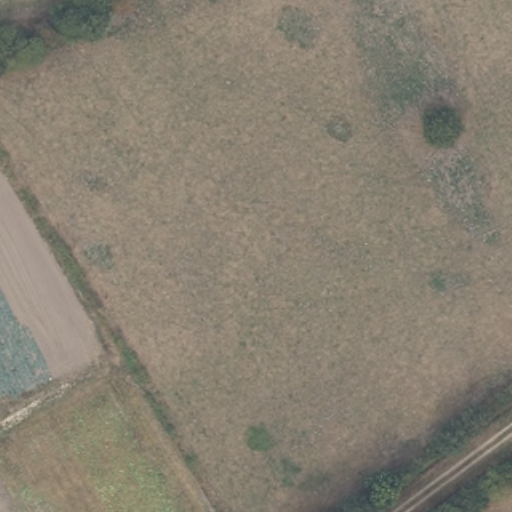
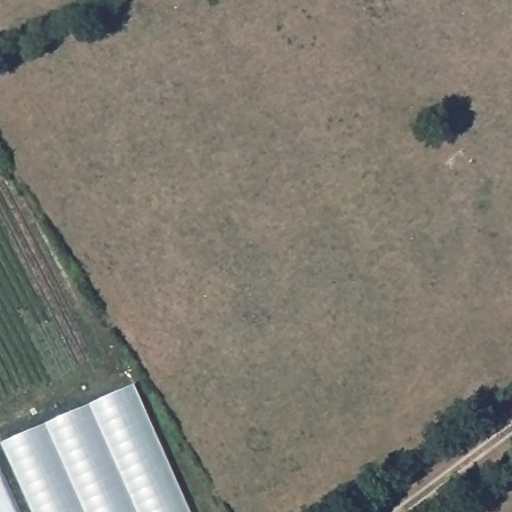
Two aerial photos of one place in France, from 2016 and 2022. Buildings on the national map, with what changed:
new [(4,442),(136,384),(193,512),(35,512),(4,442)]
new [(23,512),(0,512),(0,458),(23,512)]

